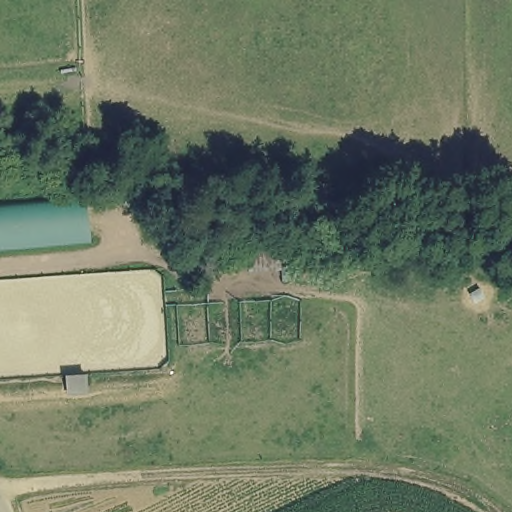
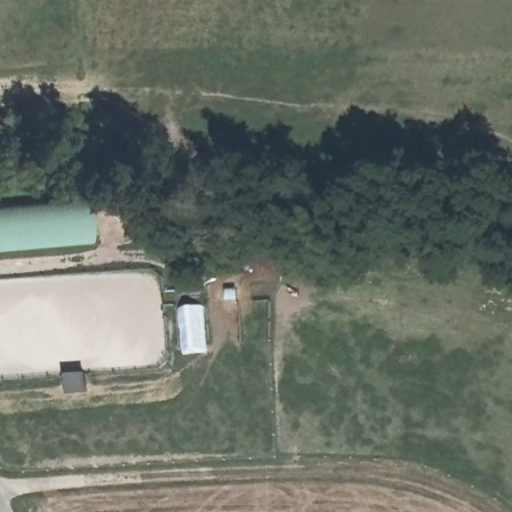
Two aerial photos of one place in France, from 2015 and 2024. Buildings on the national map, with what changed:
unchanged [(0,207),(89,200),(93,244),(0,253),(0,207)]
unchanged [(295,278),(279,279),(279,271),(248,272),(248,237),(294,235),(295,278)]

